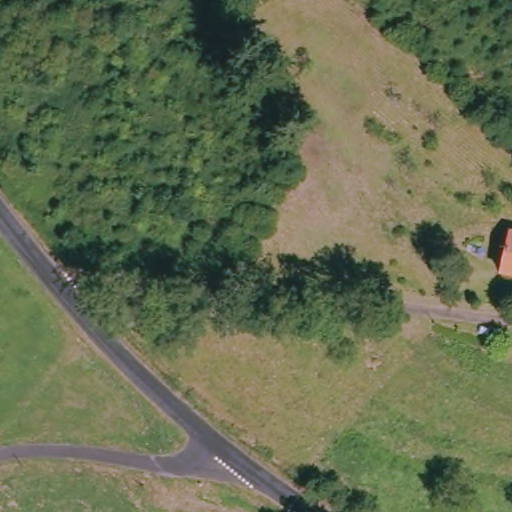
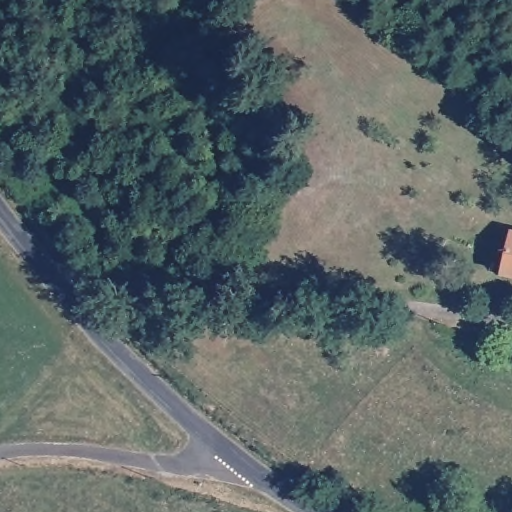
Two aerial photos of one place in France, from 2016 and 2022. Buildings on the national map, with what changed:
unchanged [(506,231),(512,232),(512,275),(501,275),(506,231)]

